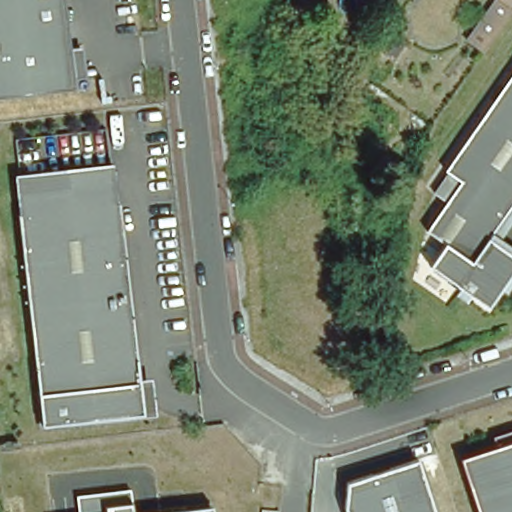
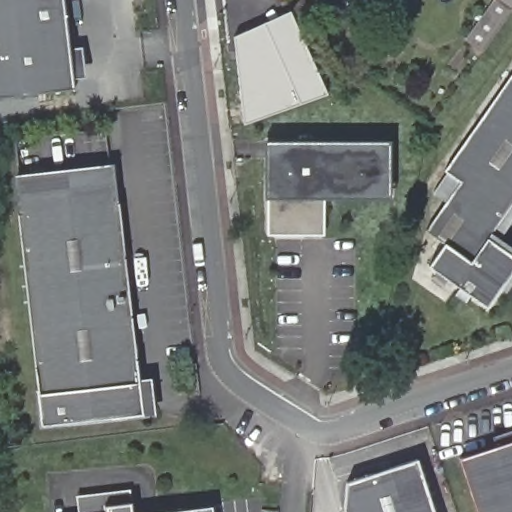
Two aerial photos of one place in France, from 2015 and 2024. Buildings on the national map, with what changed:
unchanged [(0,99),(0,0),(70,0),(80,90),(0,99)]
unchanged [(297,13),(306,0),(328,0),(306,32),(297,13)]
unchanged [(492,0),(498,0),(510,8),(476,60),(456,47),(492,0)]
unchanged [(510,8),(498,0),(512,0),(512,6),(510,8)]
new [(326,92),(247,124),(237,35),(293,12),(326,92)]
unchanged [(447,168),(512,76),(512,206),(491,236),(498,241),(512,251),(512,273),(490,304),(431,263),(447,241),(428,228),(448,199),(436,191),(451,170),(447,168)]
new [(268,234),(267,198),(267,141),(390,141),(391,198),(327,197),(325,234),(268,234)]
unchanged [(22,204),(19,180),(120,169),(120,170),(124,202),(23,213),(22,204)]
unchanged [(124,202),(147,414),(46,425),(23,213),(124,202)]
unchanged [(512,206),(512,221),(498,241),(491,236),(512,206)]
unchanged [(480,512),(465,461),(499,449),(495,437),(512,431),(512,512),(480,512)]
unchanged [(436,512),(346,512),(345,507),(347,481),(418,458),(436,512)]
unchanged [(132,489),(132,502),(134,512),(79,512),(77,496),(132,489)]
unchanged [(215,512),(161,512),(214,505),(215,512)]

